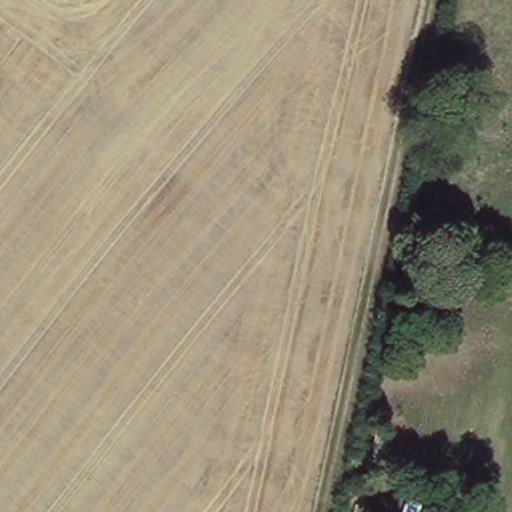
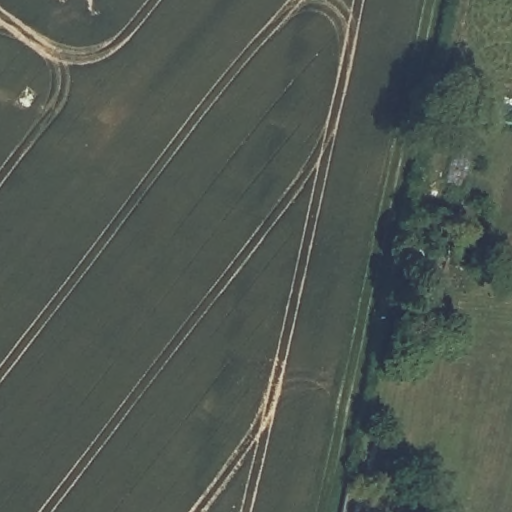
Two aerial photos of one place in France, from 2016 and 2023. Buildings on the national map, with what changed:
[]

